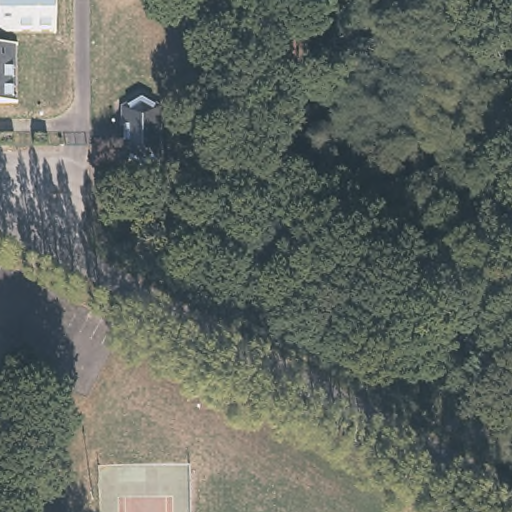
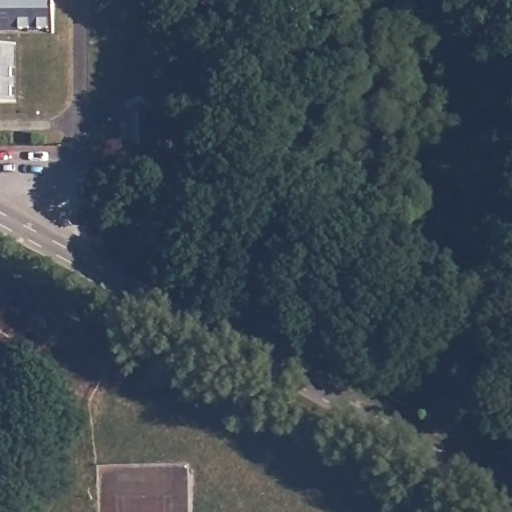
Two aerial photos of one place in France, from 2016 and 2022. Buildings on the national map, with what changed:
unchanged [(54,28),(0,29),(0,0),(54,0),(54,2),(54,28)]
unchanged [(13,42),(13,101),(0,101),(0,42),(13,42)]
unchanged [(161,109),(161,155),(139,165),(123,155),(122,107),(142,97),(161,109)]

